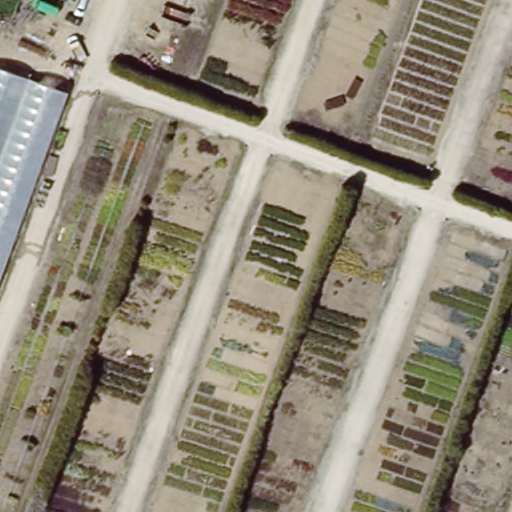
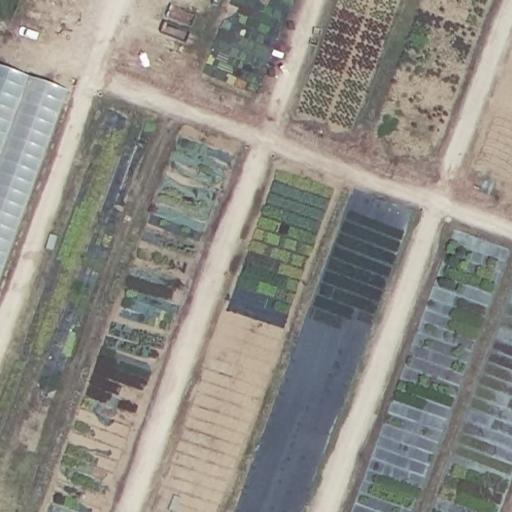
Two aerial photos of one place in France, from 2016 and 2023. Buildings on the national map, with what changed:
unchanged [(18,80),(65,99),(0,276),(0,72),(18,80)]

